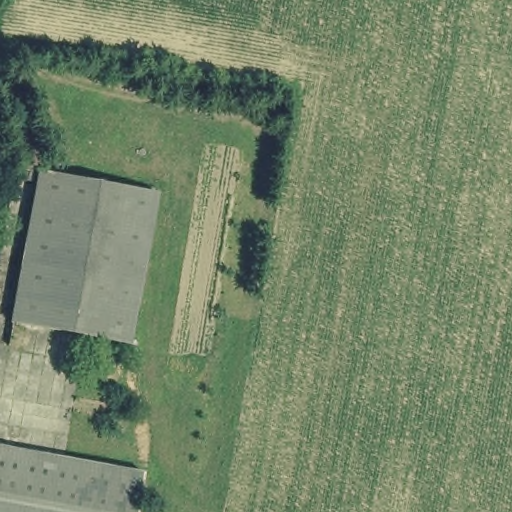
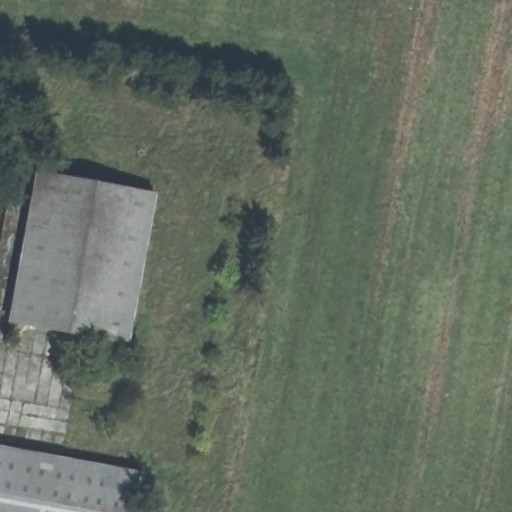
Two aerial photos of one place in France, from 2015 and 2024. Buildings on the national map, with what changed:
unchanged [(11,322),(38,170),(160,193),(131,346),(11,322)]
unchanged [(134,512),(0,512),(0,447),(140,472),(134,512)]

